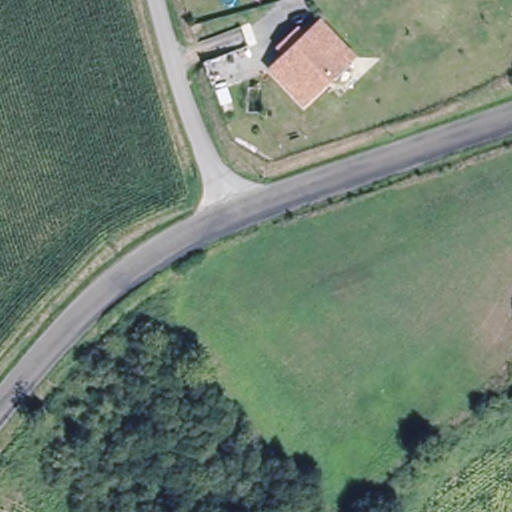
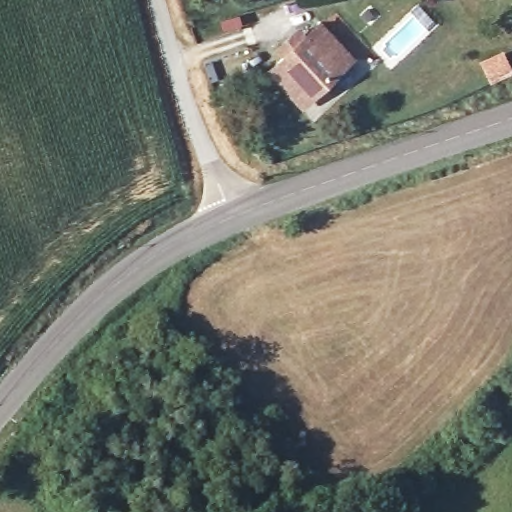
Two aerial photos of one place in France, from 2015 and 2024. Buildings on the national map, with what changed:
unchanged [(271,70),(320,23),(353,57),(304,103),(271,70)]

